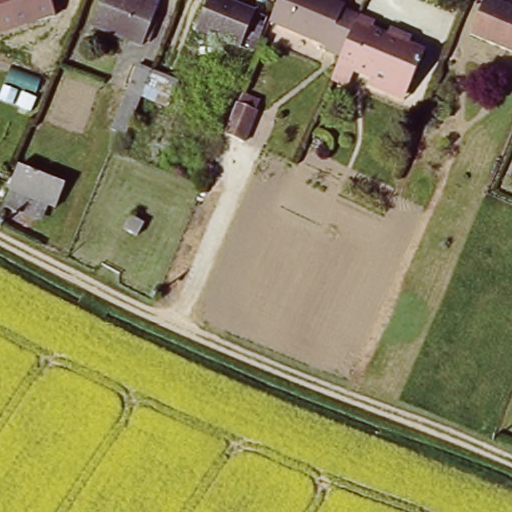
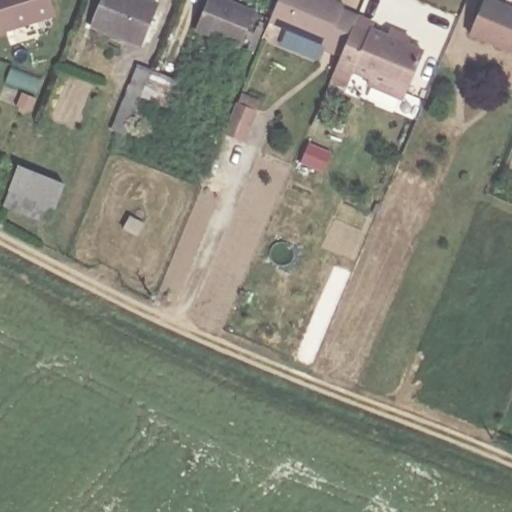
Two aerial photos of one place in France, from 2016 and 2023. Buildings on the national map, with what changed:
unchanged [(0,34),(0,0),(50,0),(55,17),(0,34)]
unchanged [(151,25),(143,46),(88,25),(98,0),(142,0),(159,6),(157,11),(166,15),(161,29),(151,25)]
unchanged [(241,47),(196,30),(208,0),(225,0),(254,11),(241,47)]
unchanged [(356,10),(339,52),(323,46),(324,40),(269,17),(276,0),(342,0),(341,4),(356,10)]
unchanged [(512,58),(465,39),(479,4),(512,17),(512,58)]
unchanged [(384,32),(387,23),(410,32),(406,42),(422,48),(408,80),(355,59),(349,73),(333,67),(339,52),(356,10),(373,17),(369,26),(384,32)]
unchanged [(109,137),(136,71),(148,76),(164,82),(154,107),(138,101),(123,141),(109,137)]
unchanged [(251,121),(238,154),(219,146),(232,113),(251,121)]
unchanged [(53,212),(44,208),(39,221),(1,204),(17,163),(63,182),(53,212)]

